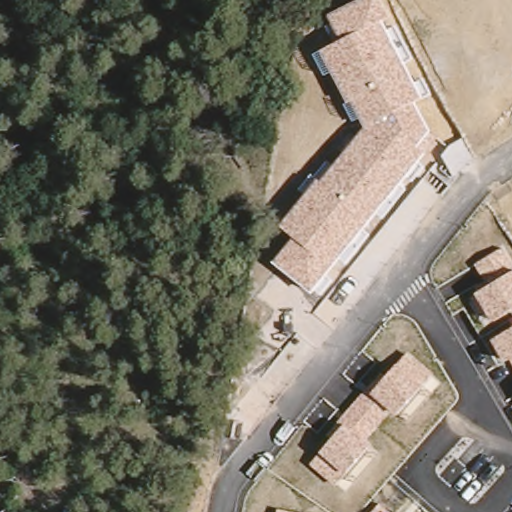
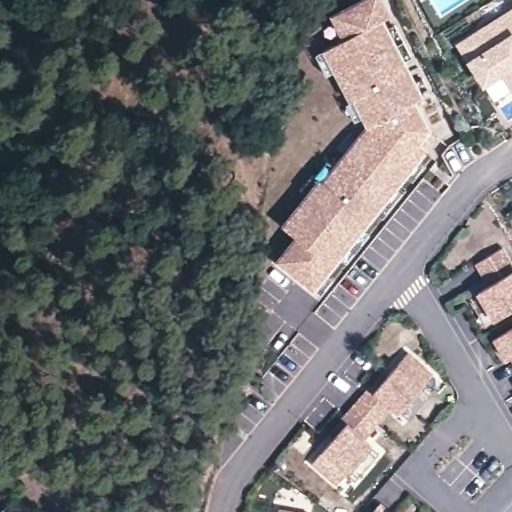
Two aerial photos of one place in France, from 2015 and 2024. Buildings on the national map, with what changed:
unchanged [(294,237),(281,226),(366,127),(354,101),(348,104),(321,51),(342,41),(331,16),(363,0),(382,0),(391,19),(384,22),(423,100),(416,103),(431,132),(417,149),(425,157),(315,295),(274,263),(294,237)]
new [(512,8),(512,92),(502,76),(483,88),(466,61),(456,43),(512,8)]
unchanged [(477,292),(488,286),(476,264),(503,250),(512,264),(512,311),(493,322),(477,292)]
unchanged [(506,359),(494,340),(512,330),(512,370),(506,359)]
unchanged [(311,466),(321,452),(343,427),(339,422),(369,385),(376,390),(398,366),(408,355),(431,375),(424,387),(398,417),(391,411),(365,441),(370,446),(348,474),(336,486),(311,466)]
unchanged [(380,506),(389,512),(374,512),(380,506)]
unchanged [(279,510),(292,512),(278,512),(279,510)]

